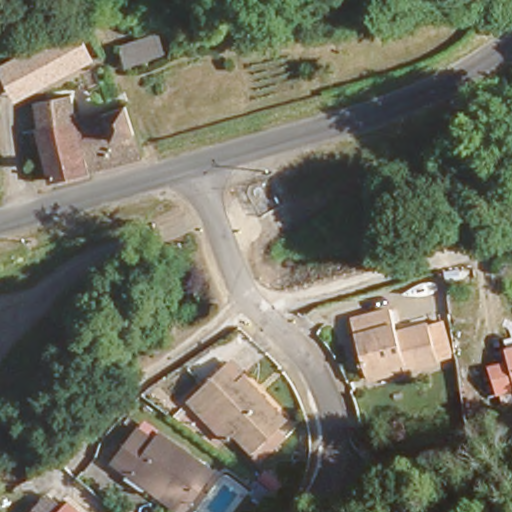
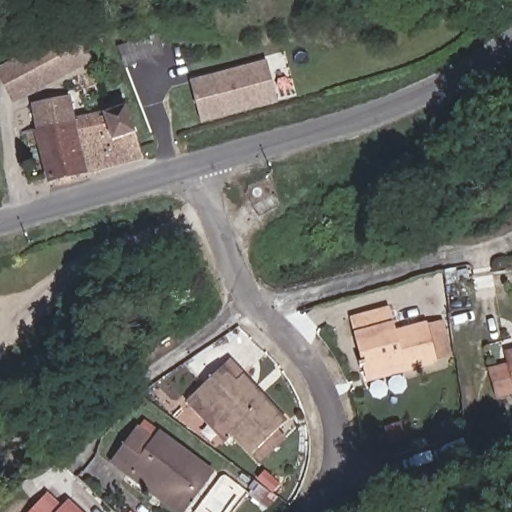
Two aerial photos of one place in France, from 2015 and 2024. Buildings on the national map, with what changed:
unchanged [(76,20),(95,51),(53,76),(34,44),(76,20)]
unchanged [(119,57),(113,39),(151,27),(156,47),(119,57)]
unchanged [(22,93),(5,64),(34,44),(53,76),(22,93)]
new [(190,80),(266,60),(278,102),(201,123),(190,80)]
unchanged [(142,154),(49,180),(41,144),(31,146),(26,127),(40,123),(35,100),(68,90),(74,114),(102,106),(126,99),(142,154)]
unchanged [(366,366),(365,362),(353,305),(386,296),(392,321),(425,314),(441,310),(449,348),(432,352),(397,359),(366,366)]
unchanged [(512,357),(510,348),(512,348),(512,357)]
unchanged [(225,365),(240,380),(248,372),(288,417),(254,450),(214,407),(207,413),(191,396),(225,365)]
unchanged [(136,475),(119,461),(145,425),(162,438),(166,433),(216,468),(190,503),(184,511),(136,475)]
unchanged [(64,496),(69,491),(91,512),(22,512),(50,483),(64,496)]

